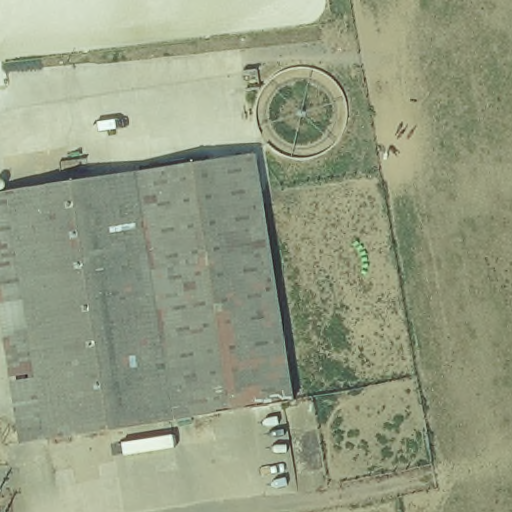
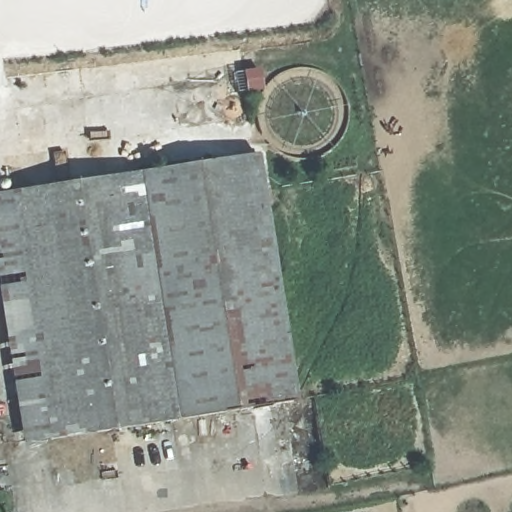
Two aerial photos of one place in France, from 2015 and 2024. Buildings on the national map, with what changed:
unchanged [(255,153),(293,403),(47,442),(7,192),(255,153)]
unchanged [(7,192),(47,442),(21,445),(0,311),(0,193),(7,192)]

